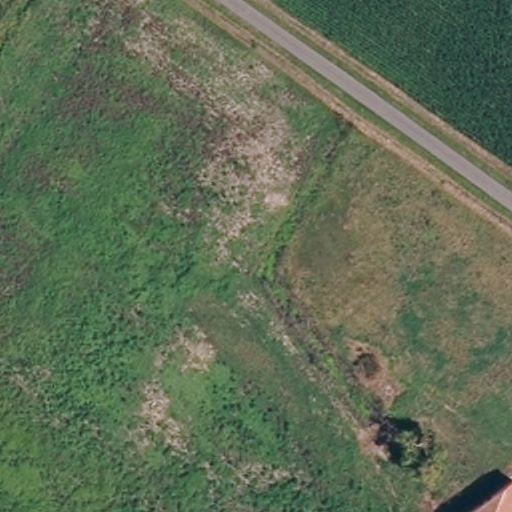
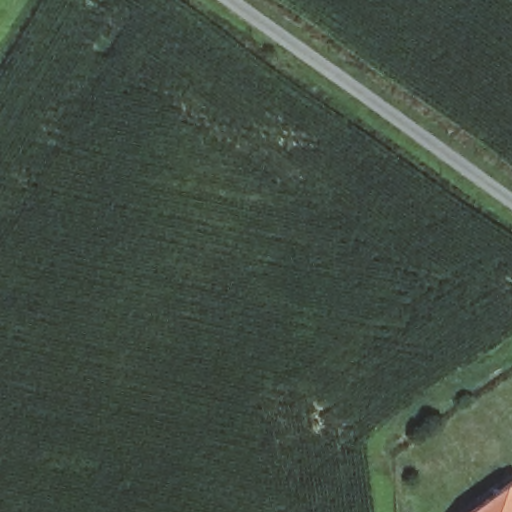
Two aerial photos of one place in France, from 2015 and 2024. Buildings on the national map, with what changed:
unchanged [(512,484),(512,512),(473,512),(511,483),(512,484)]

